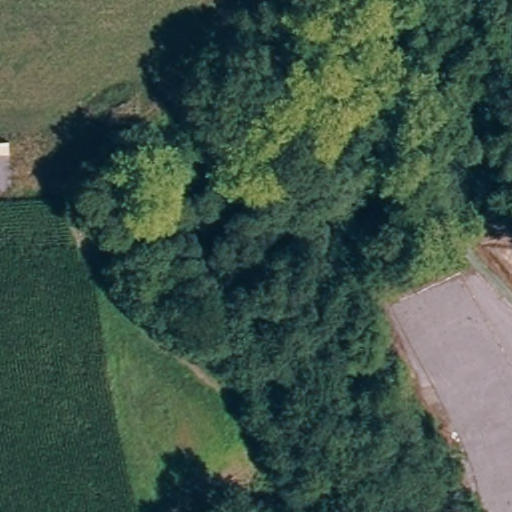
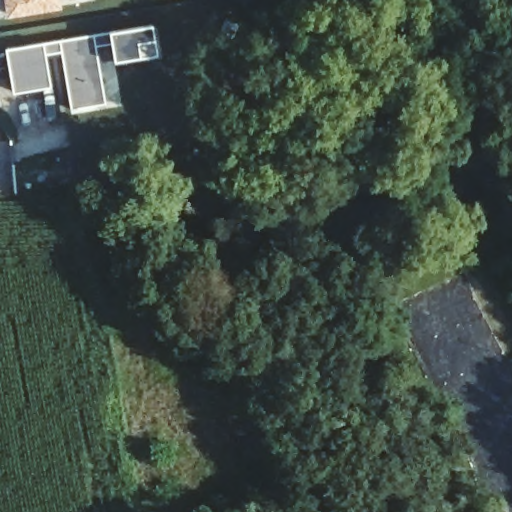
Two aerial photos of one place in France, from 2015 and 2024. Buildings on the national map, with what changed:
new [(10,16),(7,0),(97,0),(97,1),(10,16)]
new [(114,33),(154,26),(157,54),(116,61),(113,46),(98,49),(107,105),(74,111),(64,53),(49,56),(54,89),(15,94),(8,51),(114,33)]

